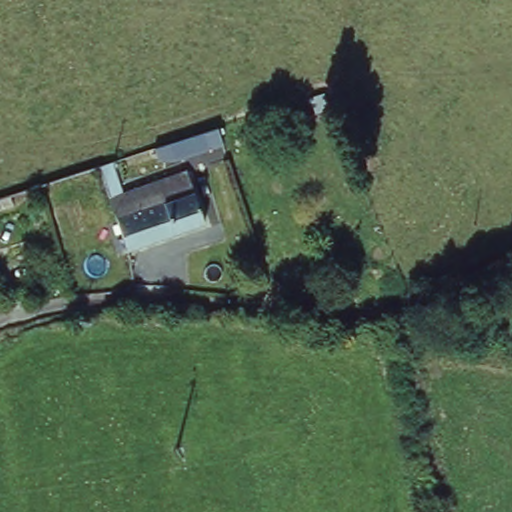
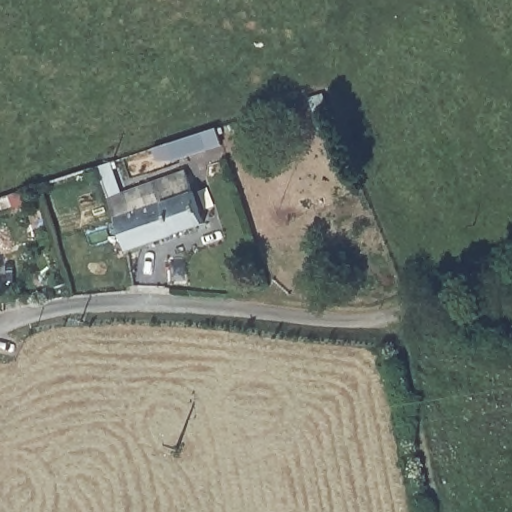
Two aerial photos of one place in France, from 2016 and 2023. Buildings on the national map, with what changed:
unchanged [(200,125),(206,142),(157,158),(138,146),(200,125)]
unchanged [(117,217),(110,199),(96,168),(107,165),(118,196),(151,184),(181,172),(201,226),(126,255),(117,217)]

